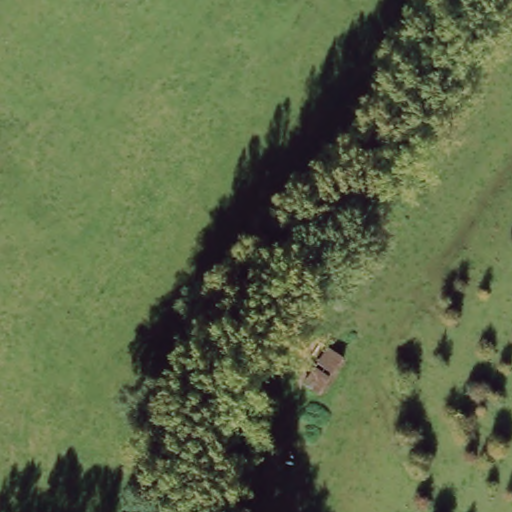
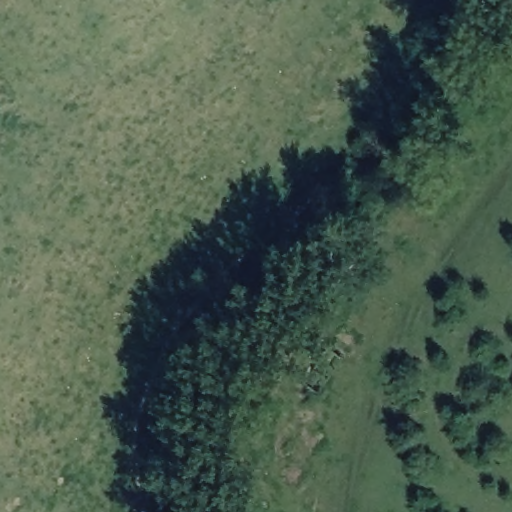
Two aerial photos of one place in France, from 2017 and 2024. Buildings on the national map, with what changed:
unchanged [(324,345),(344,357),(323,392),(304,381),(324,345)]

